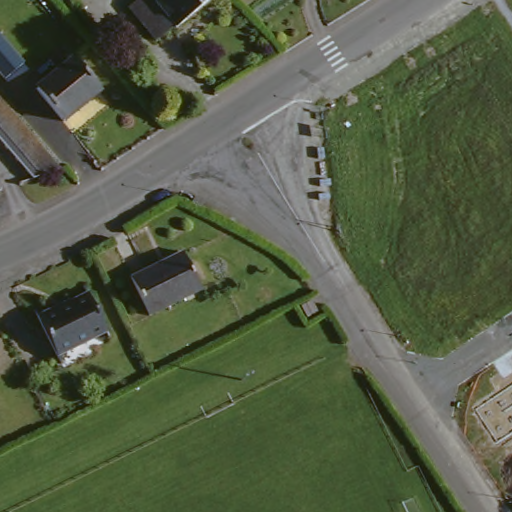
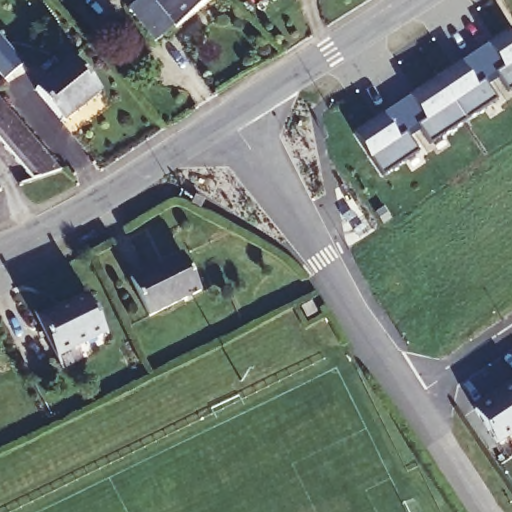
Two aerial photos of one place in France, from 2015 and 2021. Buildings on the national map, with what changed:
unchanged [(216,0),(217,0),(171,37),(169,36),(152,48),(125,15),(144,0),(216,0)]
new [(512,27),(512,87),(508,90),(499,76),(487,83),(497,98),(430,143),(419,127),(409,135),(419,151),(381,174),(353,131),(511,25),(512,27)]
unchanged [(33,98),(70,68),(99,103),(62,133),(33,98)]
unchanged [(39,174),(0,130),(0,98),(61,166),(39,174)]
unchanged [(129,285),(181,261),(198,297),(147,321),(129,285)]
unchanged [(35,326),(84,305),(98,335),(48,357),(35,326)]
new [(498,442),(475,409),(512,383),(512,432),(498,442)]

